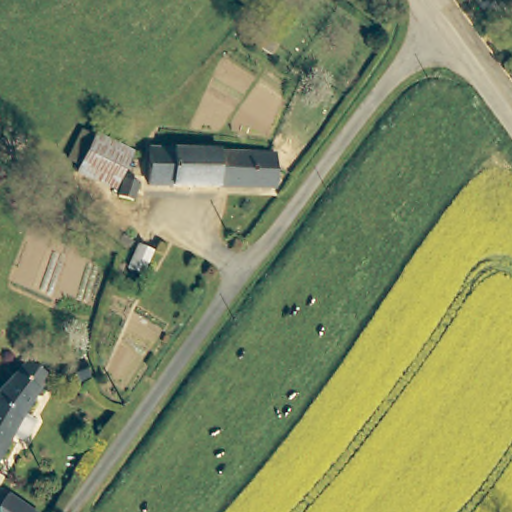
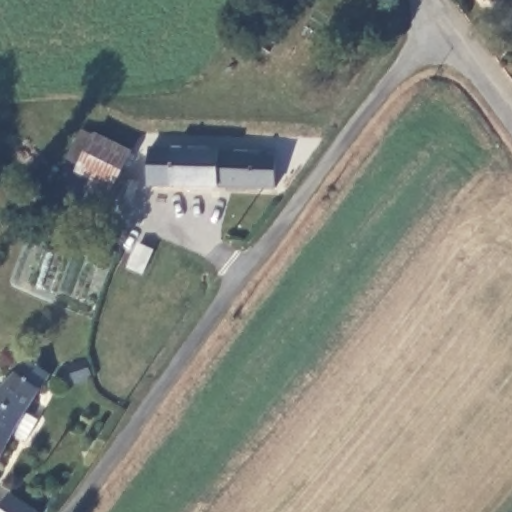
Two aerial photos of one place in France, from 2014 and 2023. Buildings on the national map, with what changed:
unchanged [(76,169),(98,133),(127,151),(108,186),(76,169)]
unchanged [(158,142),(219,147),(222,152),(274,157),(273,191),(149,181),(151,143),(158,142)]
unchanged [(140,179),(134,188),(127,182),(132,174),(140,179)]
unchanged [(84,366),(81,370),(76,373),(70,374),(65,372),(60,369),(63,362),(68,357),(74,353),(80,351),(86,361),(84,366)]
unchanged [(5,427),(0,436),(0,377),(20,358),(37,371),(16,407),(27,413),(15,432),(5,427)]
unchanged [(42,500),(35,512),(12,512),(0,506),(0,497),(10,483),(42,500)]

